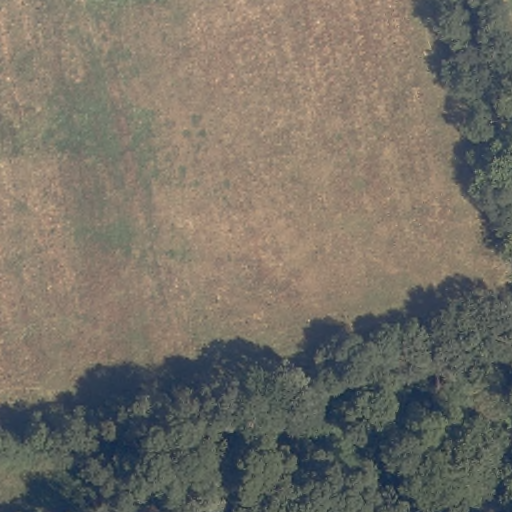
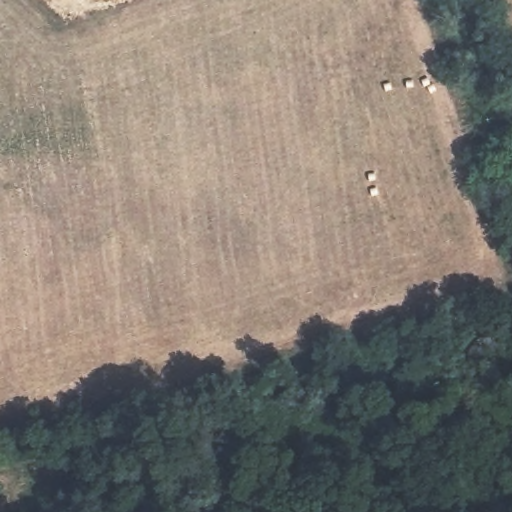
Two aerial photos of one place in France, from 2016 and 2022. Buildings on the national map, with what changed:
[]

